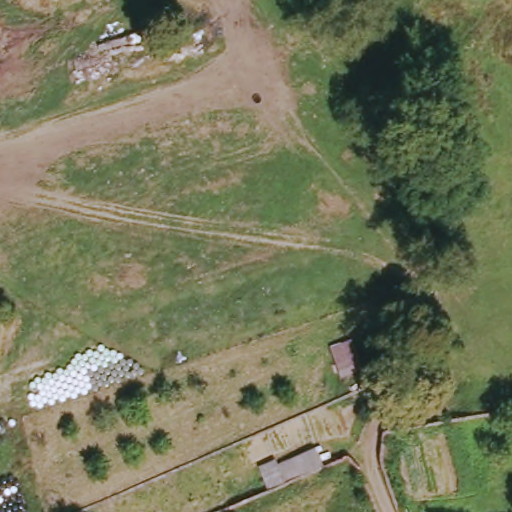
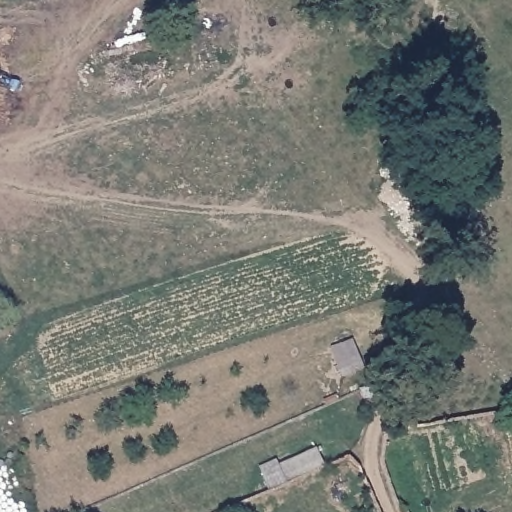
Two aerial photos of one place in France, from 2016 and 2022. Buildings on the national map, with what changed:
unchanged [(354,360),(358,370),(339,378),(334,368),(354,360)]
unchanged [(266,490),(254,468),(268,461),(271,467),(306,452),(317,467),(266,490)]

